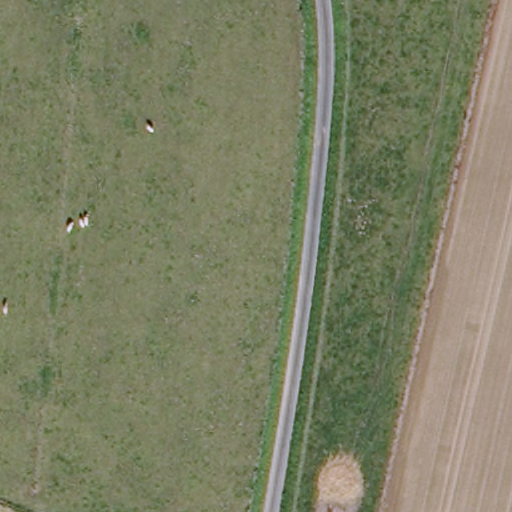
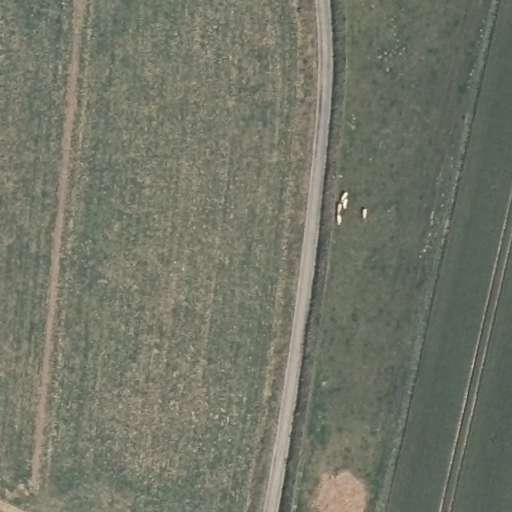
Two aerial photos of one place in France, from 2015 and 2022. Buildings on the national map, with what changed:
[]

